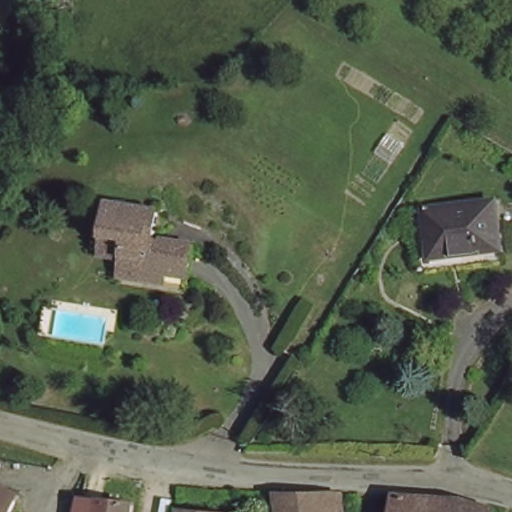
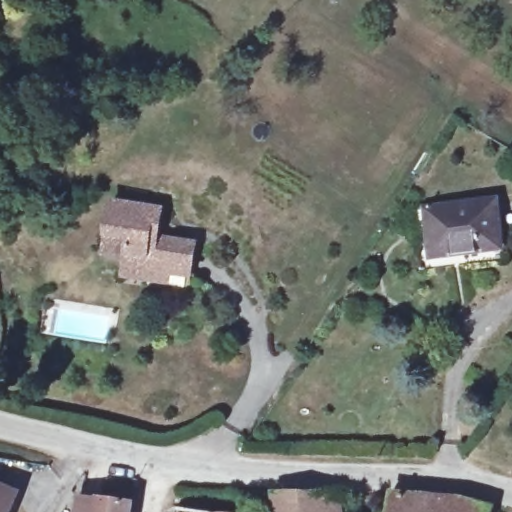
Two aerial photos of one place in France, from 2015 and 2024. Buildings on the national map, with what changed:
unchanged [(434,257),(427,208),(494,197),(501,247),(434,257)]
unchanged [(158,233),(196,237),(192,271),(173,269),(171,280),(123,274),(126,254),(106,251),(112,199),(161,204),(158,233)]
unchanged [(332,512),(284,512),(281,491),(329,496),(332,512)]
unchanged [(11,512),(0,512),(0,494),(15,499),(11,512)]
unchanged [(458,496),(492,505),(489,512),(397,512),(399,504),(458,496)]
unchanged [(132,502),(131,512),(103,512),(105,497),(132,502)]
unchanged [(220,512),(179,512),(179,506),(220,512)]

